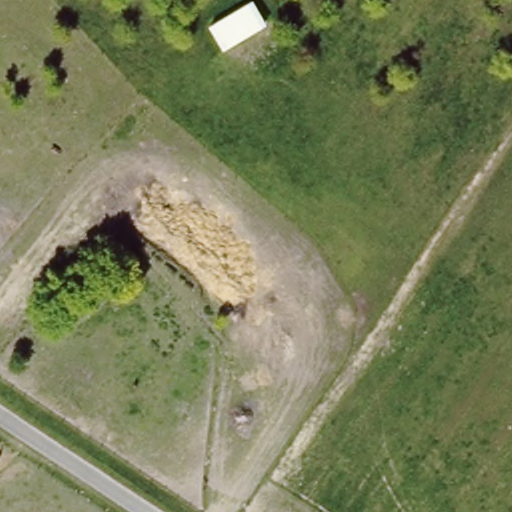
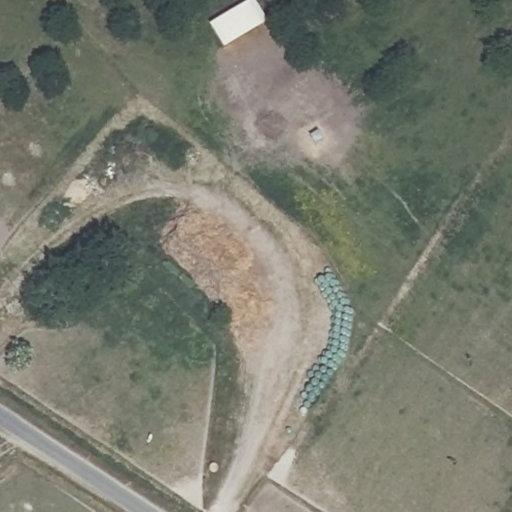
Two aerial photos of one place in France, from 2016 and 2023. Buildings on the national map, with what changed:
unchanged [(209,25),(254,0),(267,24),(224,50),(209,25)]

